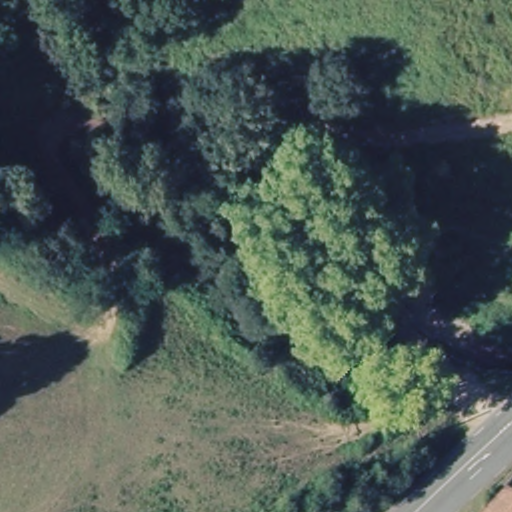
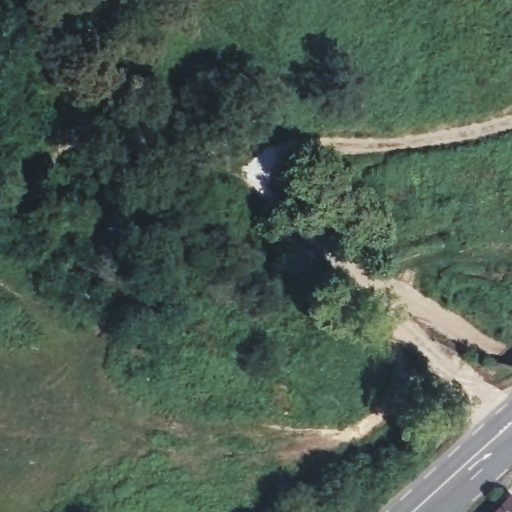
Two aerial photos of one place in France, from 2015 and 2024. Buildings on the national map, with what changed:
unchanged [(512,503),(512,512),(503,512),(512,503)]

